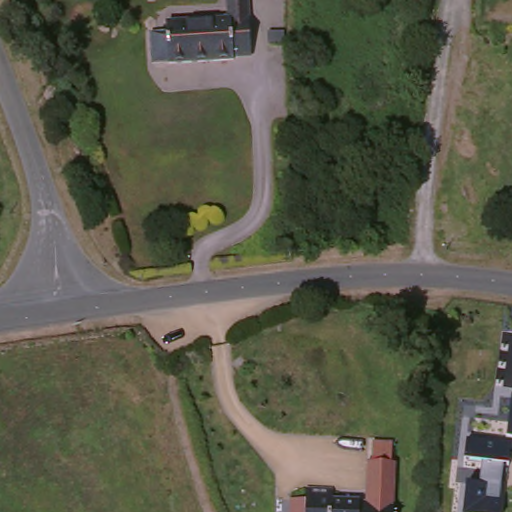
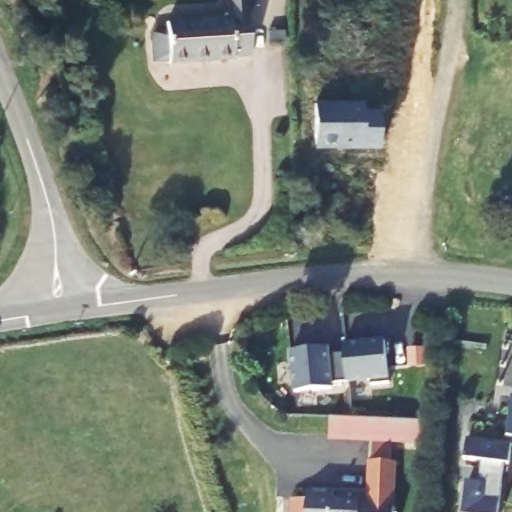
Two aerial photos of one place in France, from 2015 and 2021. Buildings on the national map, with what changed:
unchanged [(263,50),(245,52),(245,56),(178,57),(178,56),(161,57),(159,26),(175,25),(175,16),(260,12),(263,50)]
new [(317,103),(363,104),(363,113),(380,113),(380,147),(345,146),(346,144),(316,143),(317,103)]
new [(328,346),(329,353),(344,351),(343,343),(385,338),(390,381),(372,383),(371,378),(333,382),(333,387),(296,391),(291,351),(328,346)]
unchanged [(501,426),(509,388),(512,388),(512,429),(501,426)]
unchanged [(476,485),(477,462),(459,462),(460,440),(505,441),(505,463),(500,463),(498,512),(462,512),(463,485),(476,485)]
unchanged [(293,512),(293,502),(306,501),(306,488),(334,488),(335,503),(371,501),(371,457),(401,457),(399,512),(293,512)]

